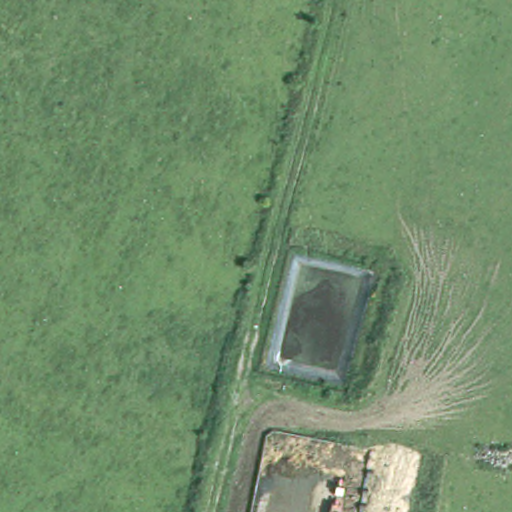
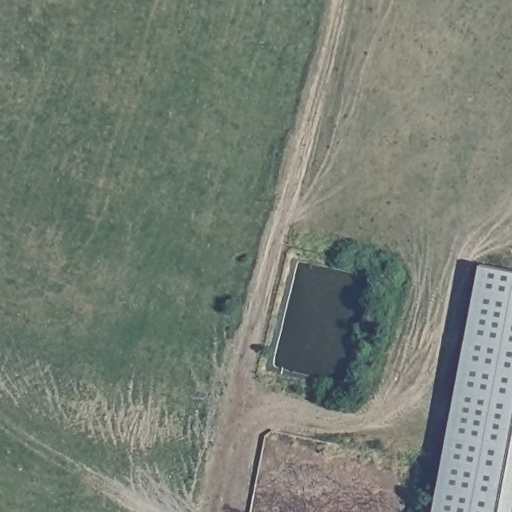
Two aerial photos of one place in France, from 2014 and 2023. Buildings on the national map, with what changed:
new [(512,272),(512,512),(436,512),(483,266),(512,272)]

